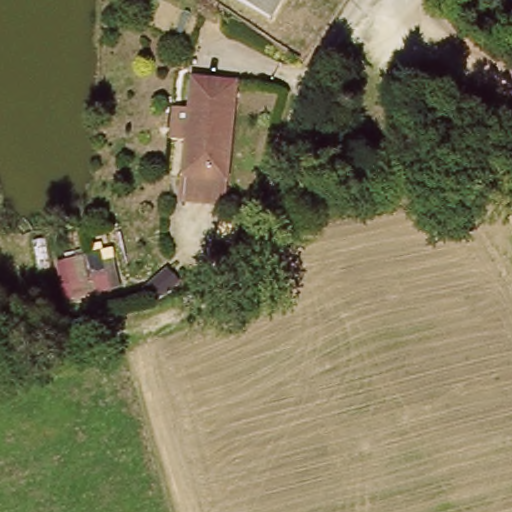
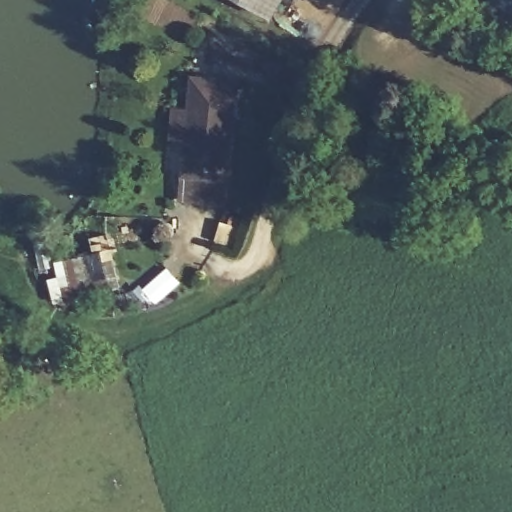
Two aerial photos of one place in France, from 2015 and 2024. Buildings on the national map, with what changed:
unchanged [(271,24),(229,0),(286,0),(271,24)]
unchanged [(188,141),(175,138),(182,106),(195,108),(201,78),(245,86),(225,182),(182,174),(188,141)]
unchanged [(176,198),(182,174),(225,182),(220,206),(176,198)]
unchanged [(113,246),(124,286),(73,298),(65,256),(113,246)]

